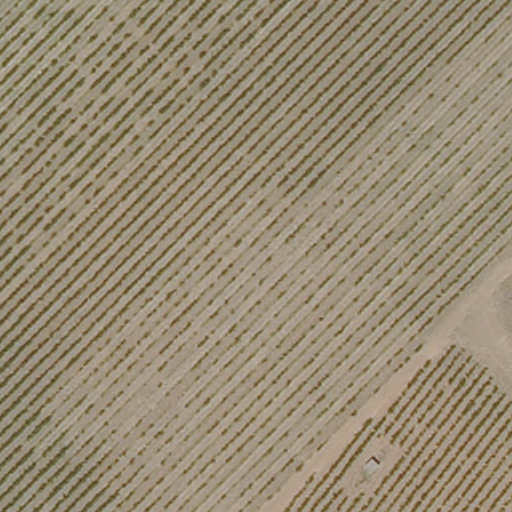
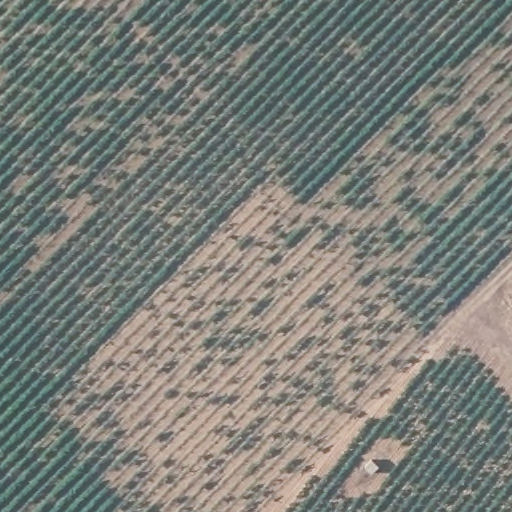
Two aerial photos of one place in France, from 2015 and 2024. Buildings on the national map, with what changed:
unchanged [(383,467),(371,478),(360,467),(371,455),(383,467)]

